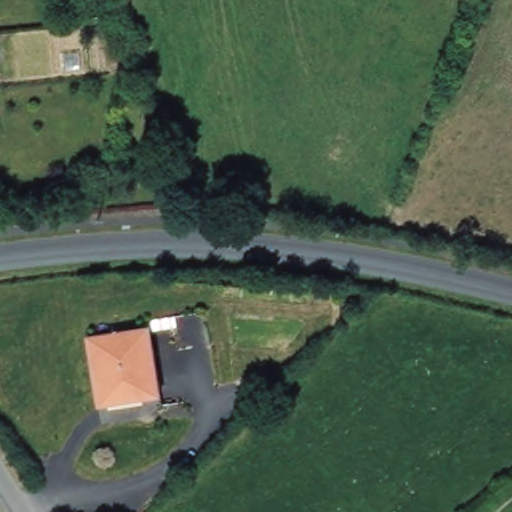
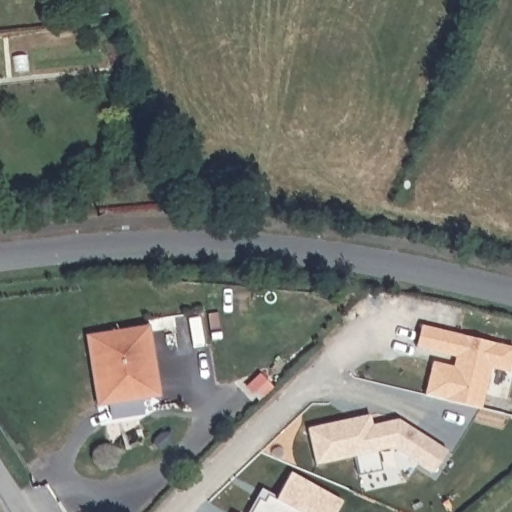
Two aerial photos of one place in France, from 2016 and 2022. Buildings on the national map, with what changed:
new [(512,347),(512,352),(508,371),(489,367),(481,407),(425,393),(433,361),(454,366),(455,355),(417,346),(422,325),(512,347)]
unchanged [(151,327),(162,395),(98,404),(86,335),(151,327)]
new [(369,415),(371,425),(397,419),(446,451),(432,473),(393,447),(377,451),(382,470),(358,476),(354,456),(315,465),(307,428),(352,418),(369,415)]

